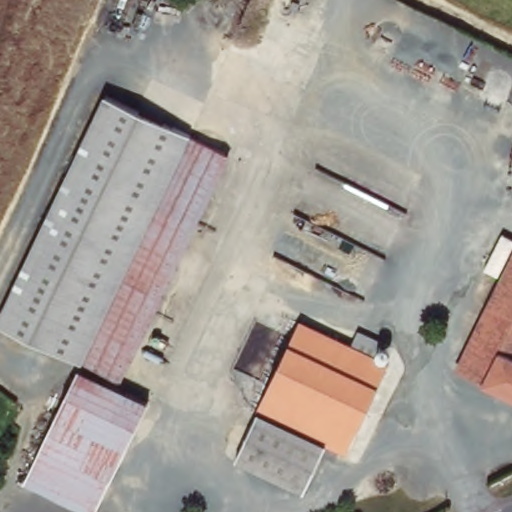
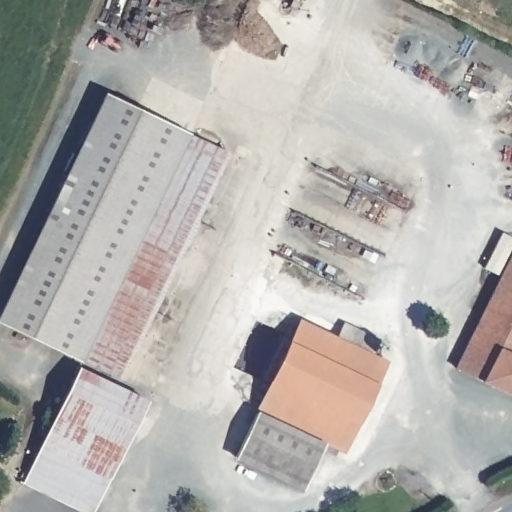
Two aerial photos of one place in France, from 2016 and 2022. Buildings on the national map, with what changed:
unchanged [(166,125),(222,151),(116,377),(65,353),(61,351),(0,323),(0,313),(101,95),(166,125)]
unchanged [(431,213),(426,229),(401,220),(408,204),(431,213)]
unchanged [(512,243),(512,324),(511,327),(512,328),(512,398),(451,372),(509,241),(512,243)]
unchanged [(296,319),(349,343),(356,327),(376,337),(369,353),(383,359),(344,448),(337,445),(334,452),(322,447),(304,487),(234,456),(296,319)]
unchanged [(511,327),(512,324),(512,328),(511,327)]
unchanged [(108,477),(91,512),(87,512),(22,480),(40,444),(77,366),(146,399),(108,477)]

